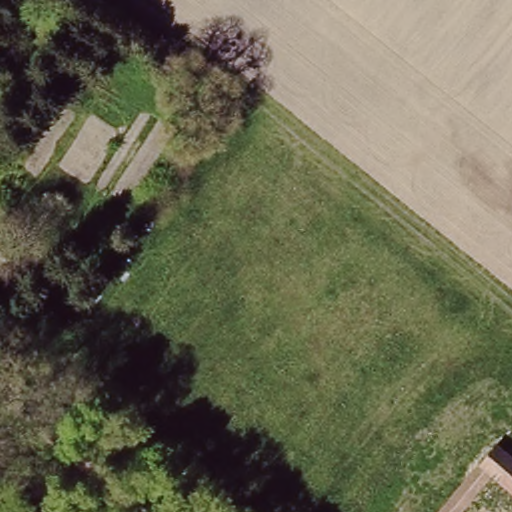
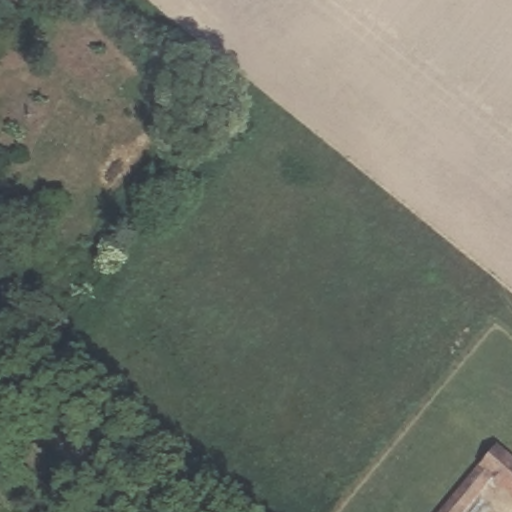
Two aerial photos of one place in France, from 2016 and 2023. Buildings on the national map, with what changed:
unchanged [(500,484),(476,512),(432,512),(492,441),(512,456),(512,494),(500,484)]

